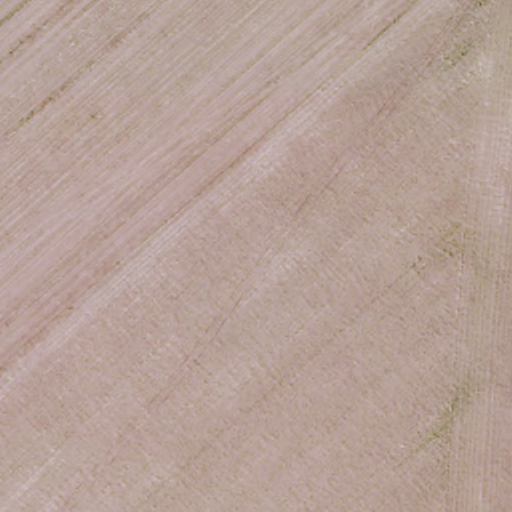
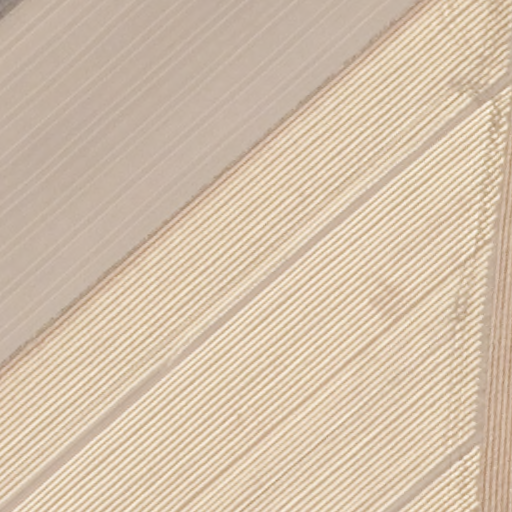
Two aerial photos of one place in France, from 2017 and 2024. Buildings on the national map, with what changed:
[]

